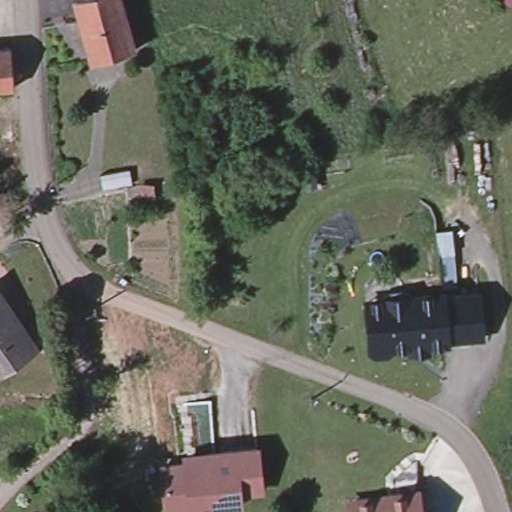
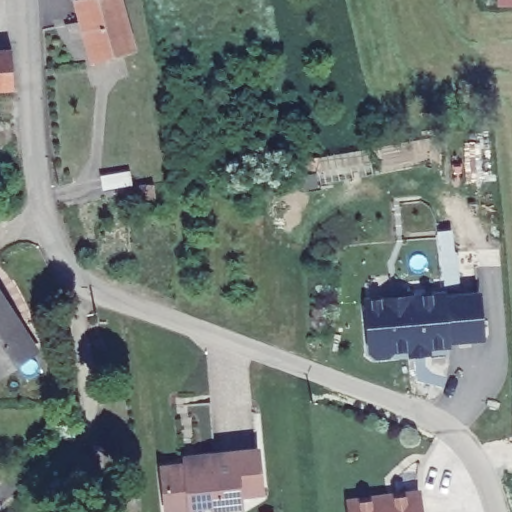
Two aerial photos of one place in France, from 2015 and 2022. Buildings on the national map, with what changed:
unchanged [(137,52),(92,62),(76,0),(122,0),(137,52)]
unchanged [(497,7),(496,0),(512,0),(512,6),(497,7)]
unchanged [(14,88),(0,89),(0,51),(12,50),(14,88)]
unchanged [(185,155),(188,170),(170,175),(161,179),(157,165),(167,161),(185,155)]
unchanged [(370,347),(367,317),(366,296),(376,295),(382,295),(390,291),(402,290),(411,295),(411,297),(417,296),(443,295),(444,298),(478,295),(482,338),(447,341),(447,345),(421,347),(392,350),(388,355),(381,356),(376,356),(370,347)]
unchanged [(12,323),(31,353),(0,373),(0,298),(15,321),(12,323)]
unchanged [(245,495),(246,507),(227,509),(228,512),(172,512),(167,470),(191,466),(190,459),(207,457),(262,451),(266,493),(245,495)]
unchanged [(376,500),(392,498),(393,512),(354,512),(352,495),(375,493),(376,500)]
unchanged [(423,512),(393,512),(392,498),(421,495),(423,512)]

